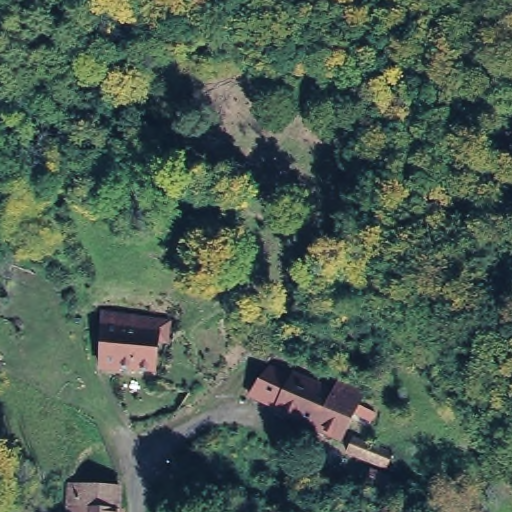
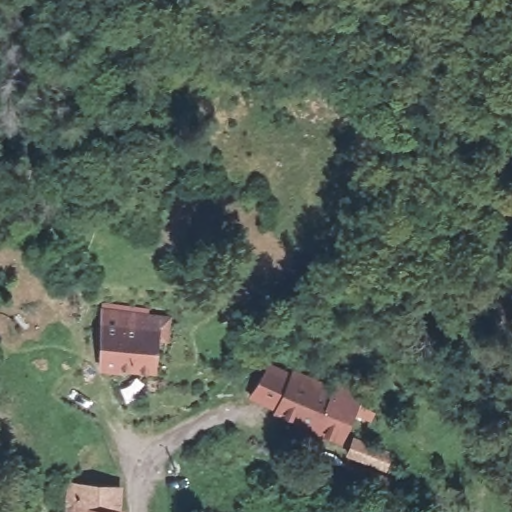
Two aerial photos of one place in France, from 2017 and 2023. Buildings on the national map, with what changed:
unchanged [(159,376),(105,372),(105,322),(159,326),(159,376)]
unchanged [(334,385),(359,397),(355,408),(337,444),(285,420),(283,425),(273,420),(290,381),(328,397),(334,385)]
unchanged [(370,420),(364,435),(360,433),(353,429),(360,415),(367,418),(370,420)]
unchanged [(351,439),(355,440),(389,453),(383,467),(346,454),(351,439)]
unchanged [(370,469),(387,477),(380,492),(365,486),(370,469)]
unchanged [(120,512),(71,512),(71,510),(67,509),(67,486),(71,486),(119,484),(120,512)]

